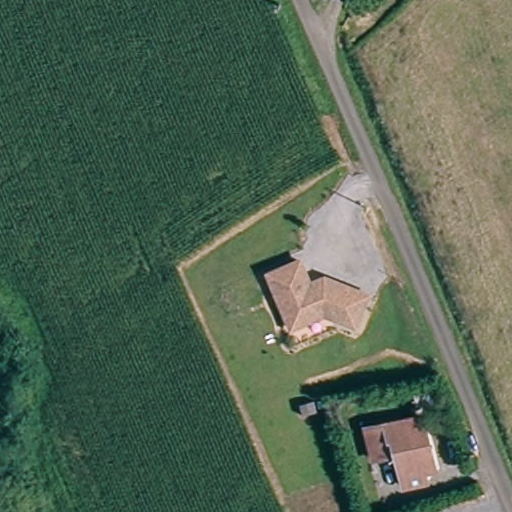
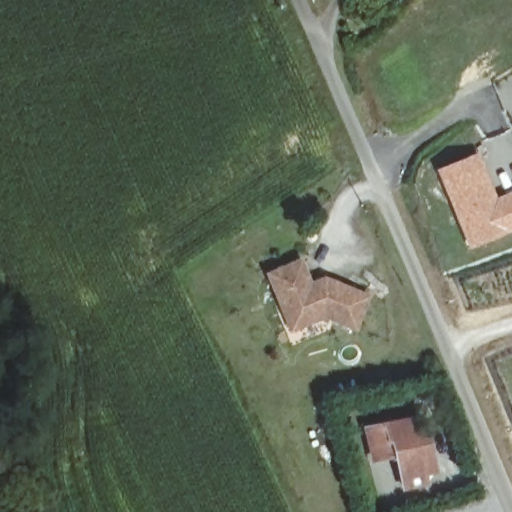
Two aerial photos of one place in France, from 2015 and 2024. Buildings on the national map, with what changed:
new [(512,192),(512,232),(470,249),(437,170),(478,152),(497,197),(512,192)]
unchanged [(314,283),(318,280),(326,283),(329,276),(373,293),(361,324),(331,313),(297,328),(272,274),(303,260),(314,283)]
unchanged [(434,463),(423,467),(427,478),(405,485),(394,453),(373,460),(363,429),(417,411),(434,463)]

